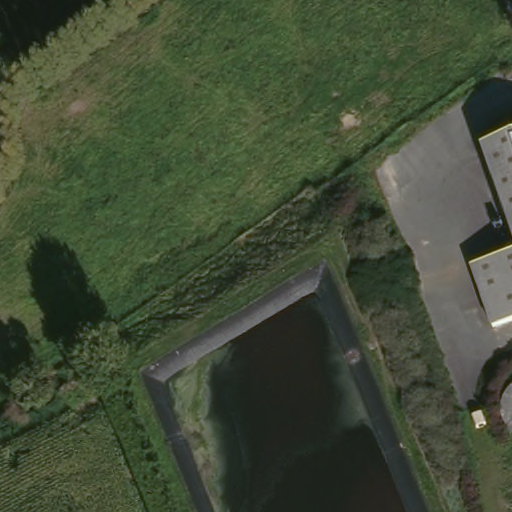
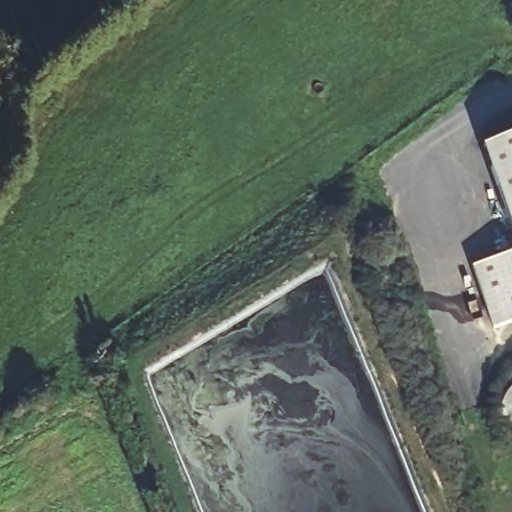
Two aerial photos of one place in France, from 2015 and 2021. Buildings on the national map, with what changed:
unchanged [(512,131),(512,235),(479,145),(512,131)]
unchanged [(470,267),(512,252),(512,322),(493,330),(470,267)]
unchanged [(506,435),(504,431),(502,427),(501,422),(500,418),(500,414),(500,410),(501,405),(502,401),(504,397),(507,393),(509,390),(512,388),(512,440),(509,438),(506,435)]

